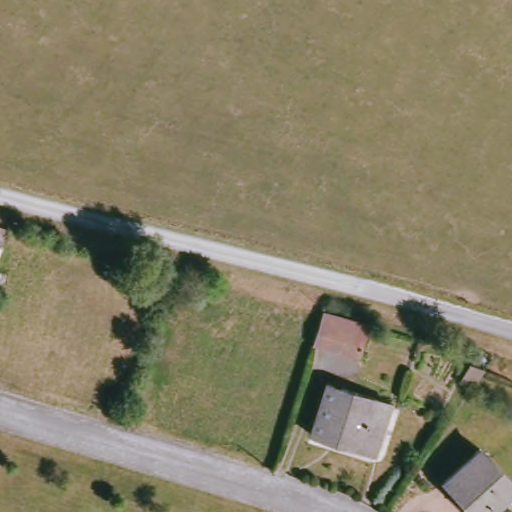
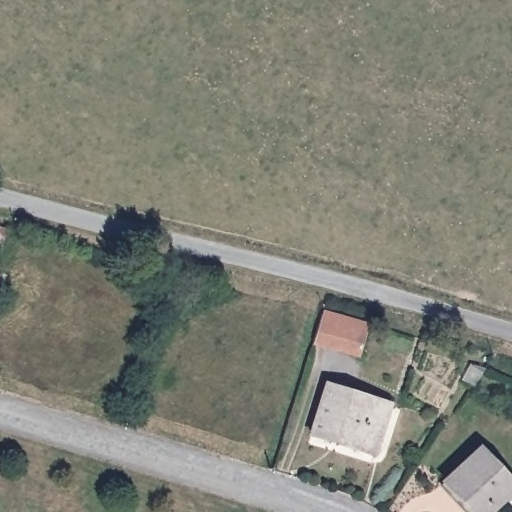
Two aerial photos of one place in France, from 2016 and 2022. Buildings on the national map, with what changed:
unchanged [(361,359),(314,345),(324,315),(360,325),(369,328),(361,359)]
unchanged [(393,402),(377,451),(314,433),(330,383),(393,402)]
unchanged [(479,446),(512,481),(512,489),(486,512),(472,512),(442,479),(479,446)]

